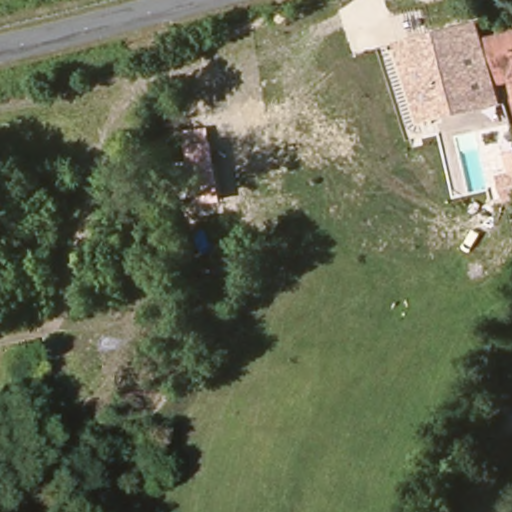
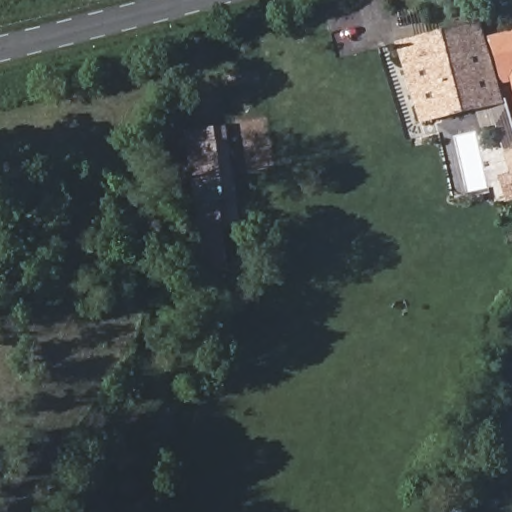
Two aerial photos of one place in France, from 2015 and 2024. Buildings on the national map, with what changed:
unchanged [(427,128),(403,54),(482,27),(485,40),(498,89),(502,103),(427,128)]
unchanged [(512,86),(498,89),(485,40),(512,33),(512,86)]
unchanged [(222,200),(194,203),(185,144),(182,129),(209,126),(209,141),(215,141),(222,200)]

